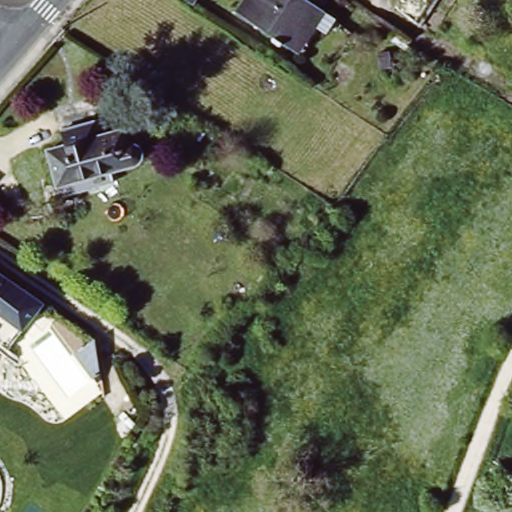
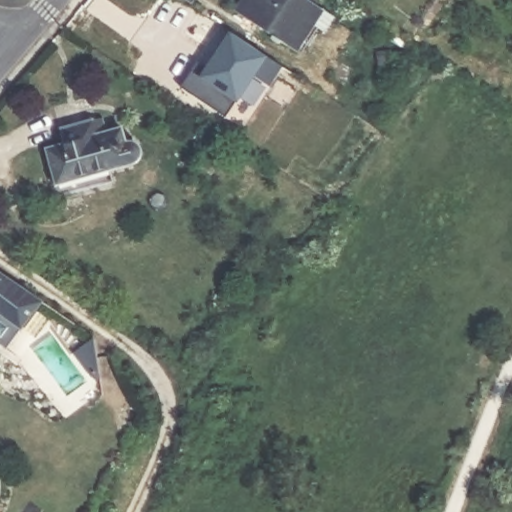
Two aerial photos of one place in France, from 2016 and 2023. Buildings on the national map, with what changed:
unchanged [(188,0),(202,0),(197,6),(188,0)]
unchanged [(302,57),(235,10),(242,0),(318,0),(327,6),(302,57)]
new [(225,117),(179,87),(196,62),(206,68),(230,33),(282,67),(270,86),(253,74),(225,117)]
unchanged [(63,131),(107,119),(112,134),(126,130),(131,145),(133,144),(138,144),(143,146),(146,149),(147,152),(147,156),(146,160),(144,163),(73,183),(59,186),(49,151),(67,146),(63,131)]
unchanged [(43,303),(30,320),(10,349),(0,341),(0,273),(43,303)]

